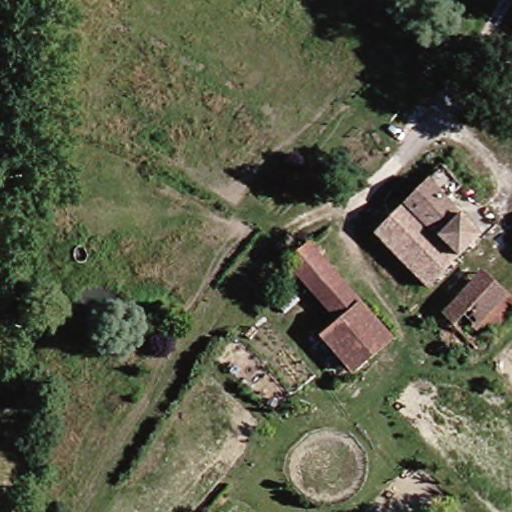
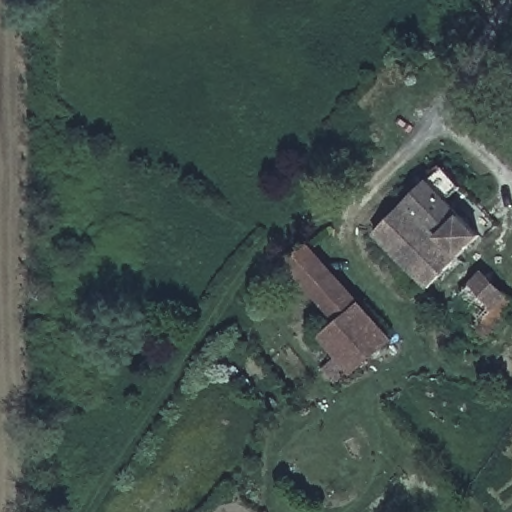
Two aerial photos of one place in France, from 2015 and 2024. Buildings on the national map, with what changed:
unchanged [(466,187),(452,199),(486,239),(429,289),(381,231),(450,169),(466,187)]
unchanged [(355,372),(284,280),(282,277),(291,272),(322,246),(370,307),(397,341),(355,372)]
unchanged [(471,333),(448,312),(484,271),(508,292),(471,333)]
unchanged [(512,295),(512,319),(486,347),(471,333),(508,292),(512,295)]

